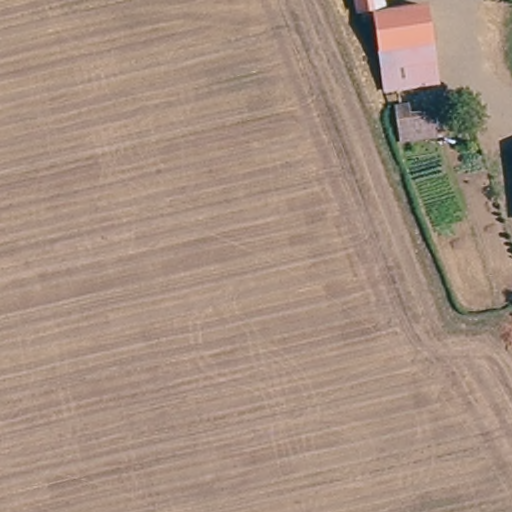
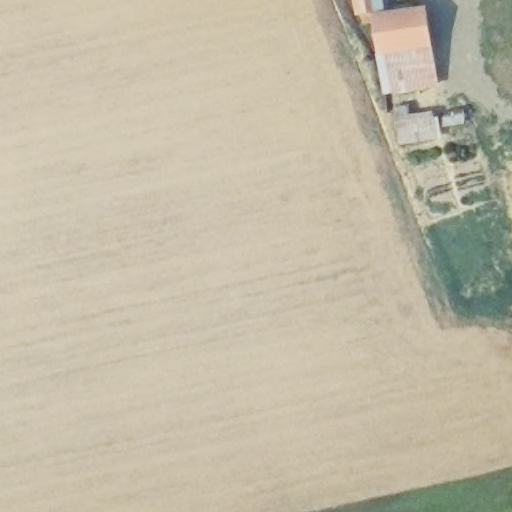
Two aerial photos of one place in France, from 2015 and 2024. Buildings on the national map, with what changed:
unchanged [(363,12),(360,0),(374,0),(377,9),(363,12)]
unchanged [(379,45),(377,11),(424,7),(427,44),(379,45)]
unchanged [(382,89),(381,67),(379,45),(427,44),(428,64),(429,84),(382,89)]
unchanged [(421,113),(424,136),(396,142),(386,102),(398,99),(400,115),(421,113)]

